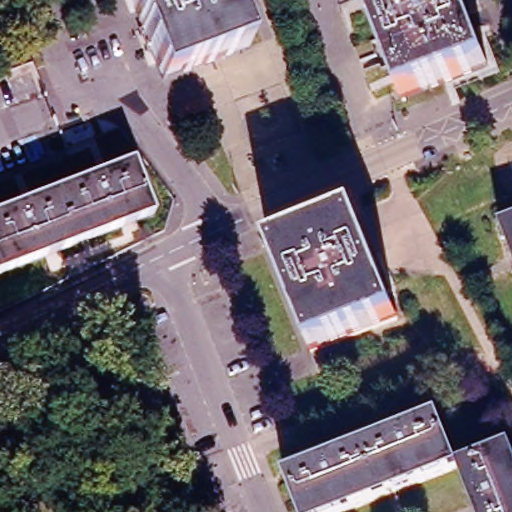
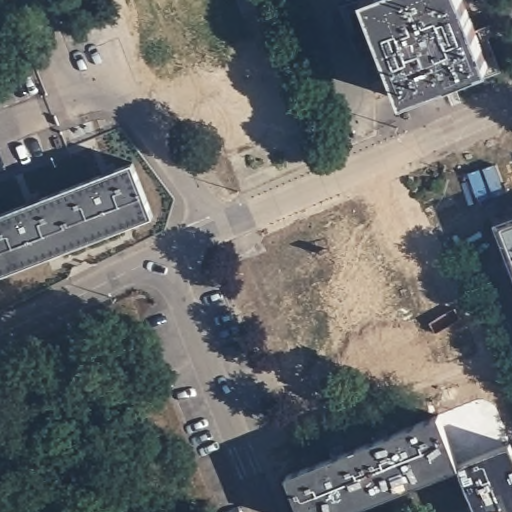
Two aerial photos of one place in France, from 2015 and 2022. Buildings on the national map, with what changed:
demolished [(248,45),(162,78),(132,0),(231,0),(248,45)]
unchanged [(488,65),(404,98),(364,0),(462,0),(488,65)]
unchanged [(131,163),(134,162),(153,215),(152,215),(128,225),(107,172),(131,163)]
unchanged [(0,274),(0,213),(107,172),(128,225),(0,274)]
demolished [(395,316),(311,350),(269,247),(354,214),(395,316)]
unchanged [(512,219),(512,257),(499,224),(512,219)]
unchanged [(295,512),(279,473),(432,412),(452,463),(452,466),(337,512),(295,512)]
unchanged [(452,463),(505,442),(512,462),(512,512),(470,512),(452,466),(452,463)]

